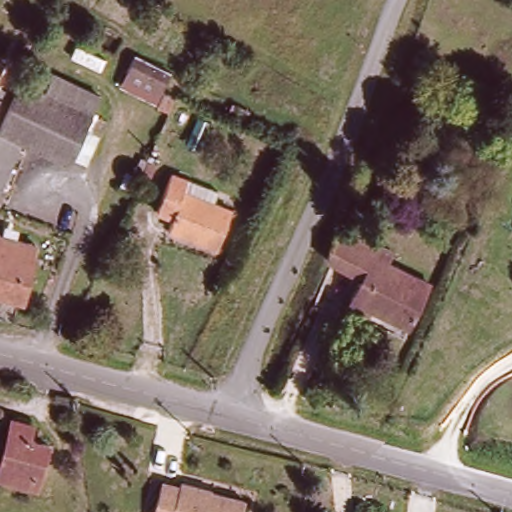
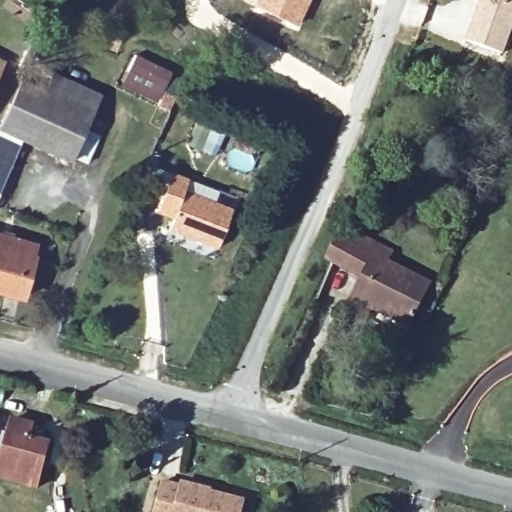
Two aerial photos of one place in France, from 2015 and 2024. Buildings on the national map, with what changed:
new [(255,0),(310,0),(297,26),(252,4),(255,0)]
new [(512,34),(504,54),(469,42),(484,0),(512,0),(512,34)]
unchanged [(138,54),(172,72),(164,89),(177,97),(171,110),(122,86),(138,54)]
unchanged [(5,61),(0,73),(0,59),(5,61)]
unchanged [(55,71),(105,93),(96,112),(109,118),(90,160),(75,156),(70,167),(25,147),(34,127),(75,145),(91,108),(48,89),(55,71)]
unchanged [(34,127),(25,147),(0,200),(0,141),(27,80),(91,108),(75,145),(34,127)]
unchanged [(182,226),(171,221),(179,203),(155,193),(165,168),(187,177),(185,188),(196,194),(182,226)]
unchanged [(230,209),(215,241),(182,226),(196,194),(230,209)]
unchanged [(346,272),(324,262),(339,228),(387,248),(382,258),(421,277),(400,322),(338,291),(346,272)]
unchanged [(37,264),(22,303),(0,295),(0,250),(37,264)]
unchanged [(34,493),(0,481),(0,469),(16,425),(31,431),(28,439),(50,447),(34,493)]
unchanged [(181,484),(206,490),(207,495),(245,503),(244,512),(158,512),(164,486),(180,488),(181,484)]

